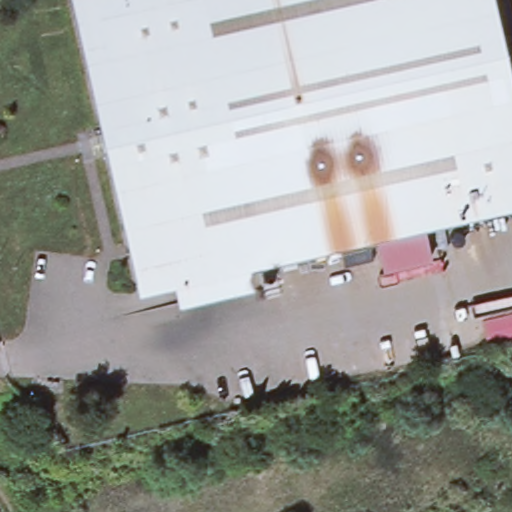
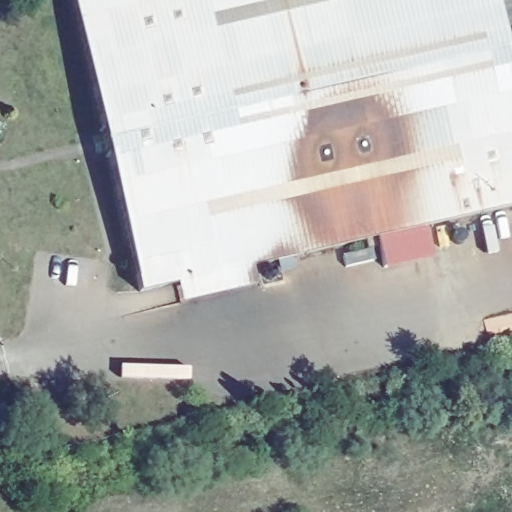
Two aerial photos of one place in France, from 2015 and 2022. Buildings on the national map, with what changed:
unchanged [(138,292),(71,0),(494,0),(512,76),(512,205),(138,292)]

